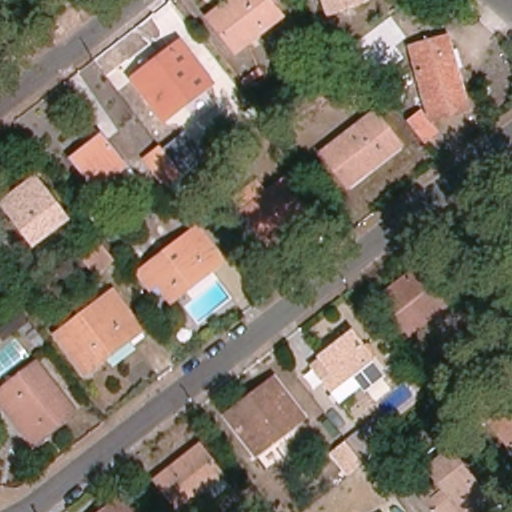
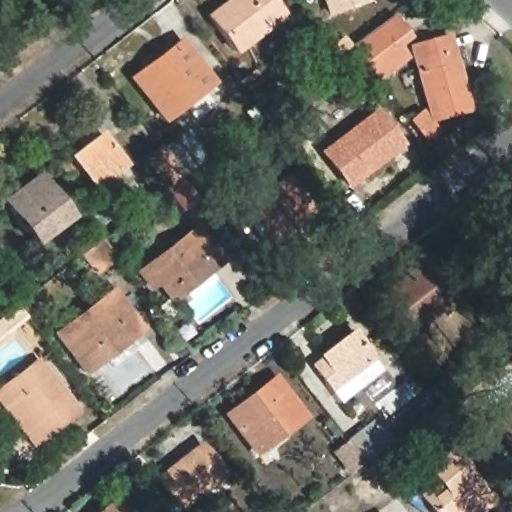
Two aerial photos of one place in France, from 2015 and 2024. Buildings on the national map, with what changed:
unchanged [(234,0),(269,0),(283,18),(237,55),(211,19),(234,0)]
unchanged [(366,2),(329,12),(325,0),(365,0),(366,2)]
new [(395,15),(411,39),(400,47),(409,58),(378,83),(350,48),(395,15)]
unchanged [(451,35),(469,107),(433,116),(417,42),(451,35)]
unchanged [(186,44),(216,84),(164,125),(134,86),(186,44)]
unchanged [(377,118),(401,151),(348,191),(323,160),(377,118)]
unchanged [(72,157),(111,128),(132,156),(96,189),(72,157)]
unchanged [(168,192),(145,162),(163,148),(186,178),(168,192)]
unchanged [(41,181),(69,216),(35,242),(8,207),(41,181)]
unchanged [(267,250),(241,216),(243,215),(233,202),(256,185),(266,197),(285,183),(311,216),(298,226),(281,240),(267,250)]
unchanged [(176,301),(163,284),(156,289),(143,273),(199,227),(227,260),(214,271),(190,289),(176,301)]
unchanged [(98,273),(85,257),(102,244),(115,260),(98,273)]
unchanged [(433,267),(460,301),(412,338),(385,303),(433,267)]
unchanged [(53,336),(111,291),(138,328),(81,372),(73,362),(64,350),(53,336)]
unchanged [(324,361),(322,357),(354,334),(383,373),(339,405),(325,386),(312,369),(324,361)]
unchanged [(39,367),(75,415),(39,443),(2,395),(39,367)]
unchanged [(282,380),(310,416),(260,454),(232,416),(282,380)]
unchanged [(495,407),(502,414),(512,406),(512,458),(480,417),(495,407)]
unchanged [(363,469),(347,448),(362,436),(379,457),(368,465),(363,469)]
unchanged [(204,447),(227,478),(183,510),(160,480),(204,447)]
unchanged [(491,502),(477,512),(434,512),(421,495),(437,482),(426,469),(450,450),(491,502)]
unchanged [(129,512),(102,512),(119,499),(129,512)]

